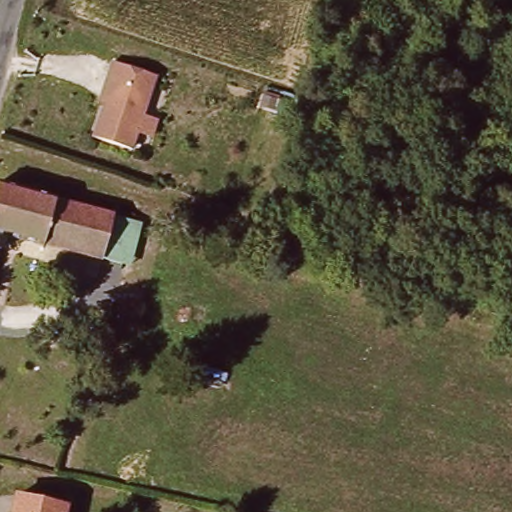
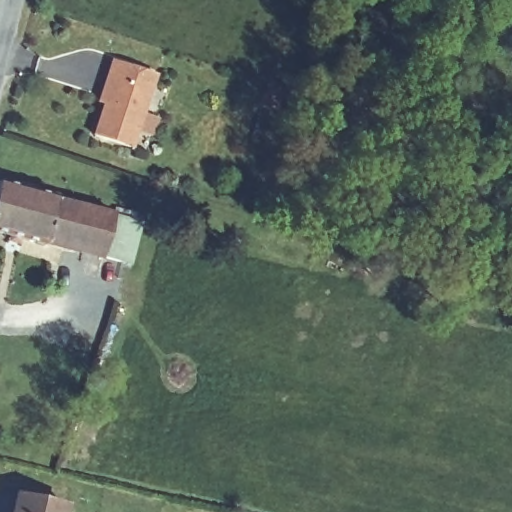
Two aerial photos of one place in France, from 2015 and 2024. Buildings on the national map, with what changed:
unchanged [(154,73),(131,147),(94,136),(103,104),(99,103),(107,77),(112,60),(154,73)]
unchanged [(56,203),(111,220),(97,271),(74,265),(78,249),(47,240),(46,246),(0,233),(0,184),(57,200),(56,203)]
unchanged [(142,225),(131,266),(100,258),(111,220),(142,225)]
unchanged [(22,494),(67,506),(66,512),(18,512),(22,494)]

